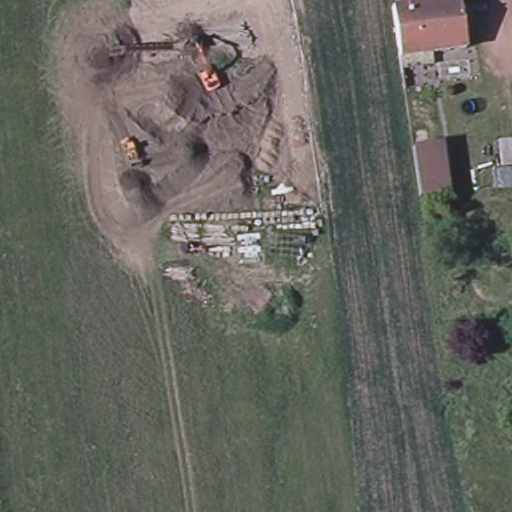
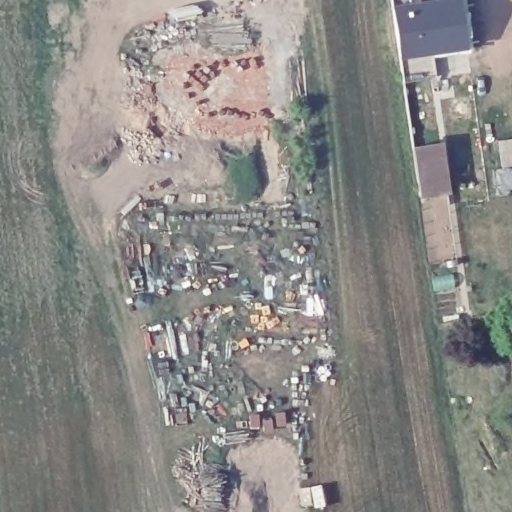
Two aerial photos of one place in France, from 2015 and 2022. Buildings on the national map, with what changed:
unchanged [(399,56),(392,6),(430,0),(459,0),(466,46),(431,51),(433,63),(401,67),(399,56)]
unchanged [(440,142),(447,190),(419,194),(412,146),(440,142)]

